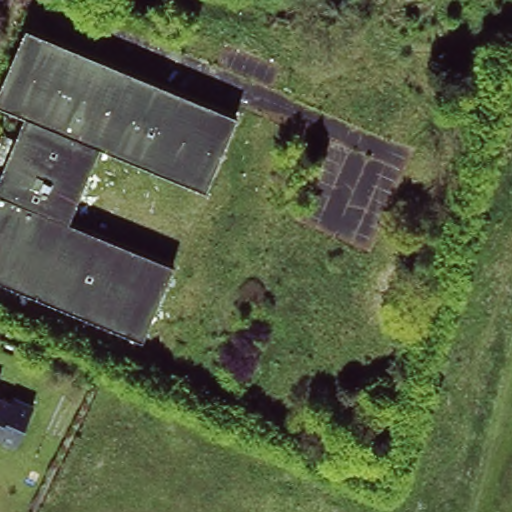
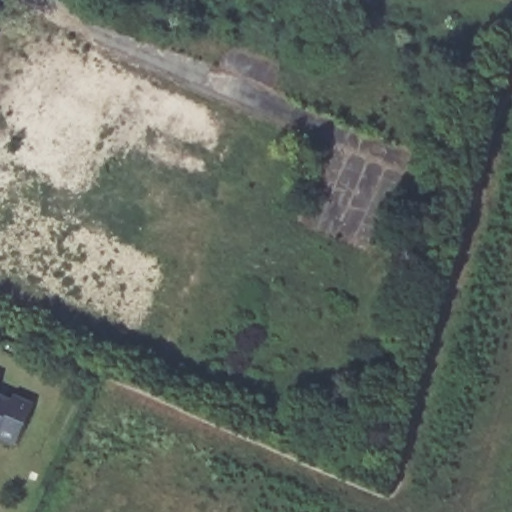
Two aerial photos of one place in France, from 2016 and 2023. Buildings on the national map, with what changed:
demolished [(0,169),(23,113),(0,100),(0,89),(24,22),(234,114),(206,183),(100,143),(73,216),(175,260),(138,332),(0,275),(0,169)]
unchanged [(0,384),(0,380),(2,381),(0,384)]
unchanged [(15,395),(33,405),(19,443),(0,435),(0,398),(13,403),(15,395)]

